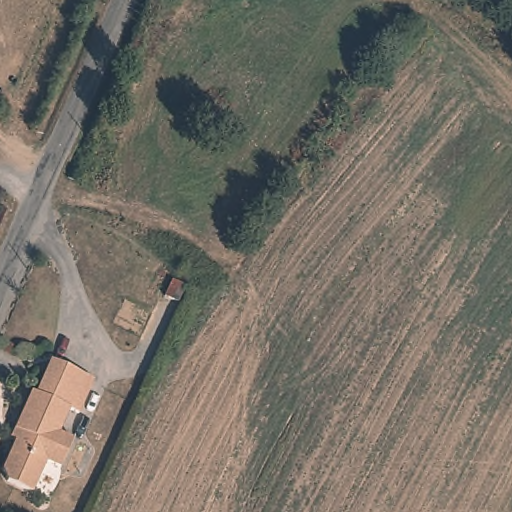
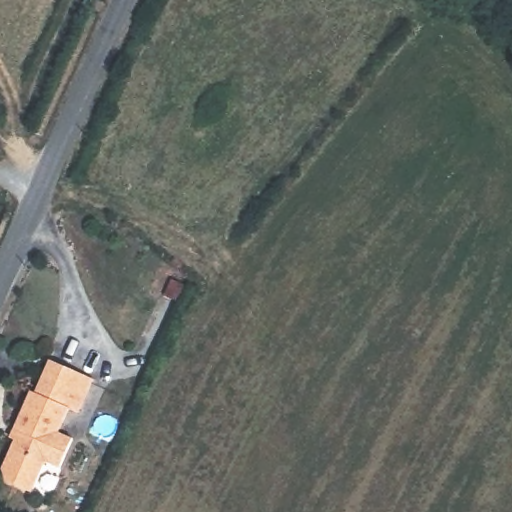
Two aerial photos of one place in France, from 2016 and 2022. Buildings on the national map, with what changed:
unchanged [(1,465),(14,435),(10,432),(31,383),(36,386),(51,352),(94,376),(78,410),(71,405),(60,430),(76,438),(61,470),(48,462),(32,495),(6,480),(1,465)]

